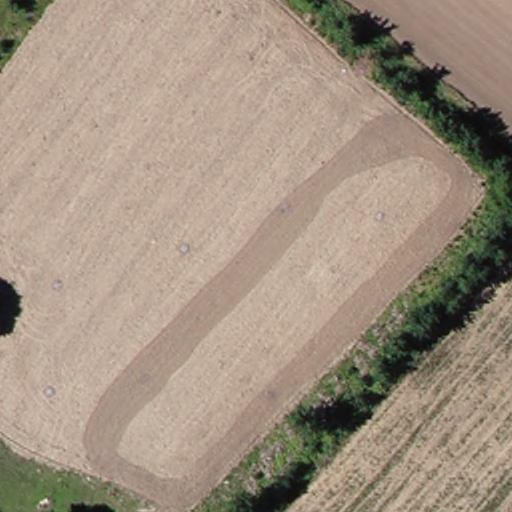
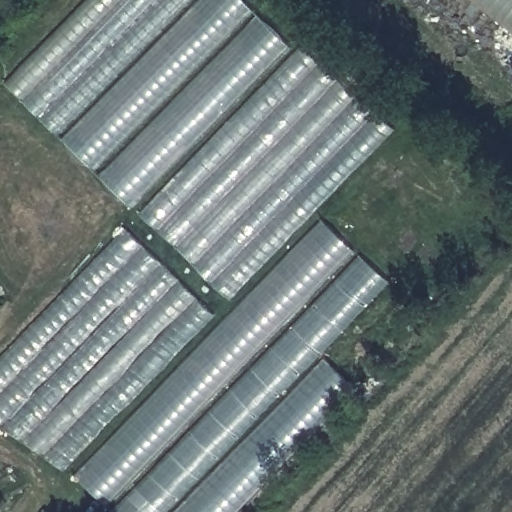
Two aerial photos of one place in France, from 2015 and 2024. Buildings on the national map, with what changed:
new [(88,0),(245,0),(293,47),(132,208),(7,83),(88,0)]
new [(512,32),(474,0),(512,0),(512,32)]
new [(300,48),(395,130),(65,472),(0,428),(0,358),(300,48)]
new [(389,283),(321,357),(347,382),(226,512),(112,512),(74,476),(320,220),(389,283)]

